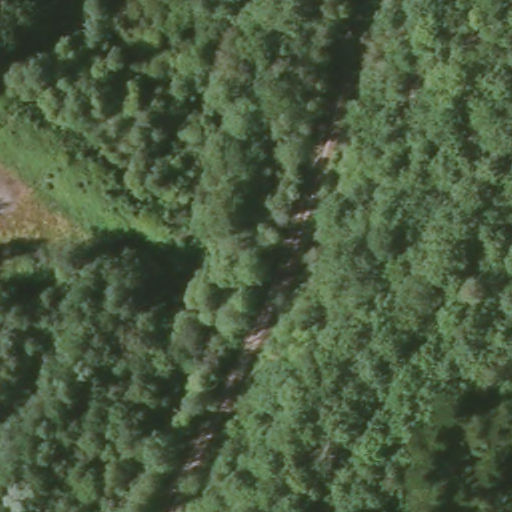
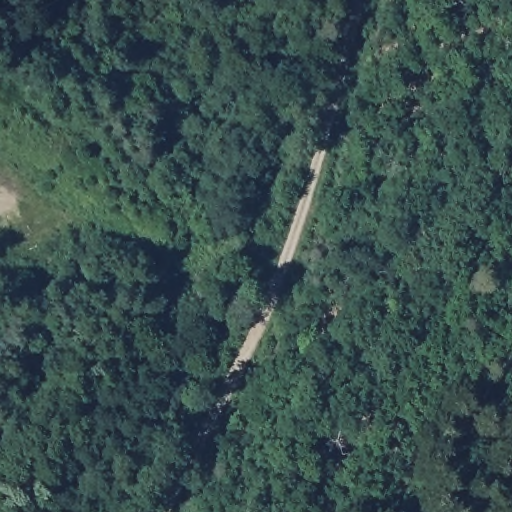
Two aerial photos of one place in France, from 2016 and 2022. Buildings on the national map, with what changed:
unchanged [(13,130),(0,147),(0,122),(13,130)]

